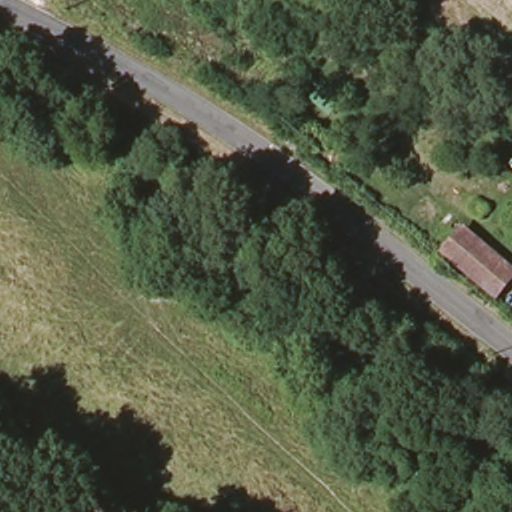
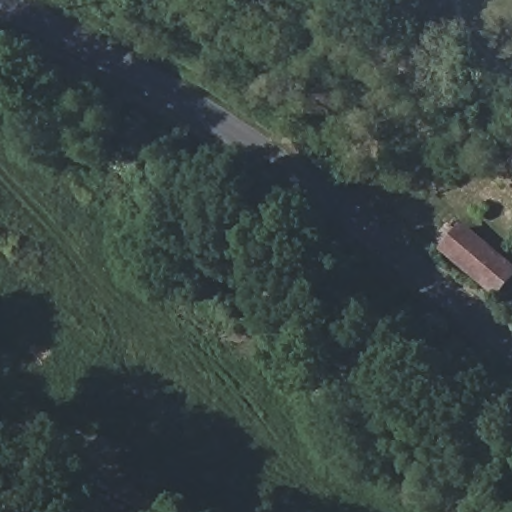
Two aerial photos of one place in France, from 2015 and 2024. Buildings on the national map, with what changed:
unchanged [(315,92),(324,82),(344,98),(335,108),(315,92)]
unchanged [(291,138),(307,117),(320,126),(302,147),(291,138)]
unchanged [(472,232),(512,266),(512,289),(505,297),(452,253),(472,232)]

